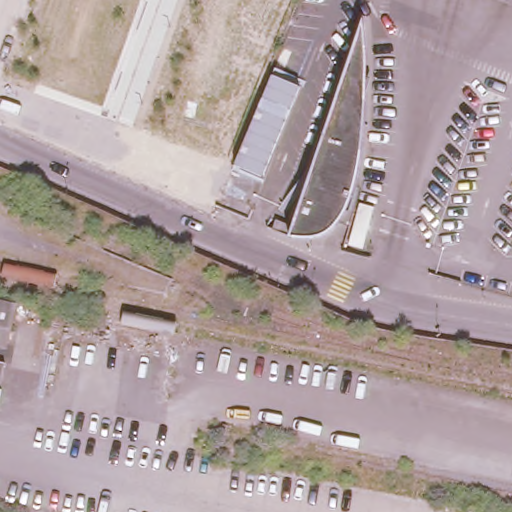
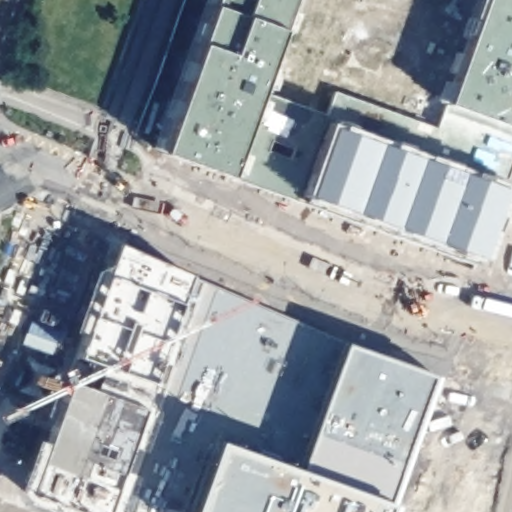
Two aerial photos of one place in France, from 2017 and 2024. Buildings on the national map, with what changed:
new [(505,188),(510,189),(485,261),(477,258),(474,267),(226,177),(160,153),(199,45),(213,6),(215,0),(291,0),(280,30),(256,95),(329,122),(335,91),(436,128),(448,106),(445,104),(483,0),(512,0),(512,168),(505,188)]
demolished [(346,212),(342,221),(336,229),(332,232),(328,235),(311,241),(309,242),(290,241),(288,241),(288,239),(298,209),(307,192),(312,182),(321,165),(313,162),(361,26),(365,72),(362,115),(358,155),(357,170),(353,187),(351,197),(350,201),(346,212)]
demolished [(51,96),(219,168),(206,197),(38,122),(51,96)]
demolished [(275,223),(288,230),(284,239),(270,234),(275,223)]
new [(391,504),(388,512),(42,512),(24,505),(22,500),(15,489),(32,440),(45,444),(67,381),(93,391),(101,367),(75,358),(83,337),(71,332),(93,272),(110,263),(117,244),(190,275),(343,343),(435,376),(391,504)]
demolished [(6,346),(0,345),(0,299),(14,301),(6,346)]

